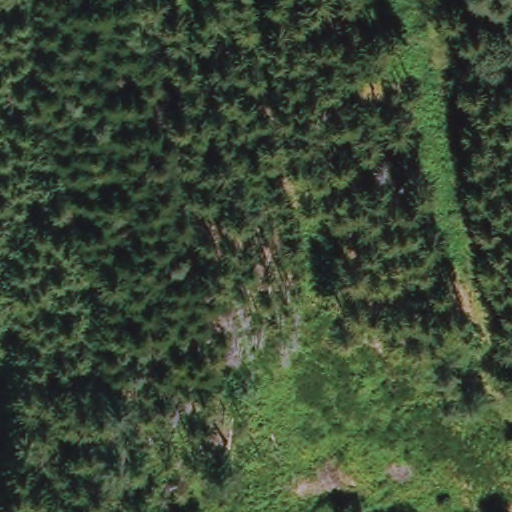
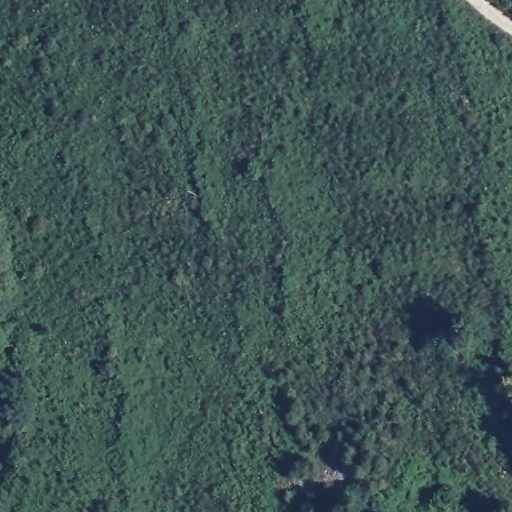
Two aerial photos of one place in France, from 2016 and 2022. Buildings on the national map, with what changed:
[]

